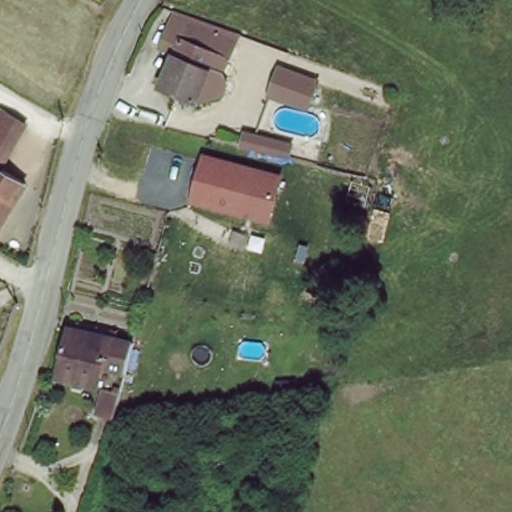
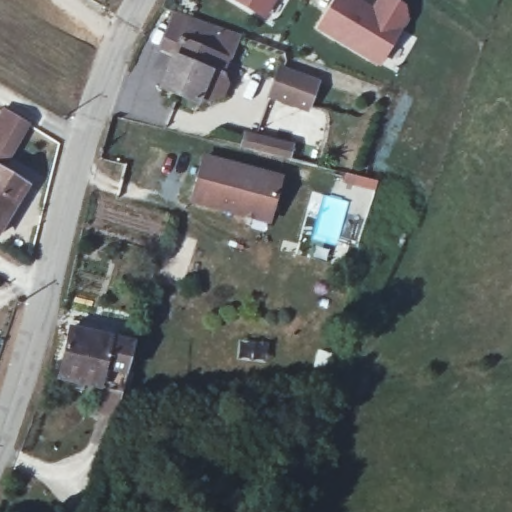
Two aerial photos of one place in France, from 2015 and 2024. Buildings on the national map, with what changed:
new [(233,0),(275,0),(263,19),(233,0)]
new [(409,20),(379,65),(315,28),(332,0),(363,0),(372,5),(375,0),(399,0),(406,4),(409,20)]
unchanged [(241,37),(228,73),(231,84),(226,97),(200,105),(159,90),(176,54),(158,47),(174,11),(241,37)]
unchanged [(319,80),(309,110),(265,96),(278,65),(319,80)]
unchanged [(4,167),(32,184),(0,238),(0,101),(12,108),(32,120),(4,167)]
unchanged [(284,174),(271,225),(189,202),(202,154),(284,174)]
unchanged [(41,370),(52,321),(116,336),(105,384),(99,407),(79,403),(84,379),(41,370)]

